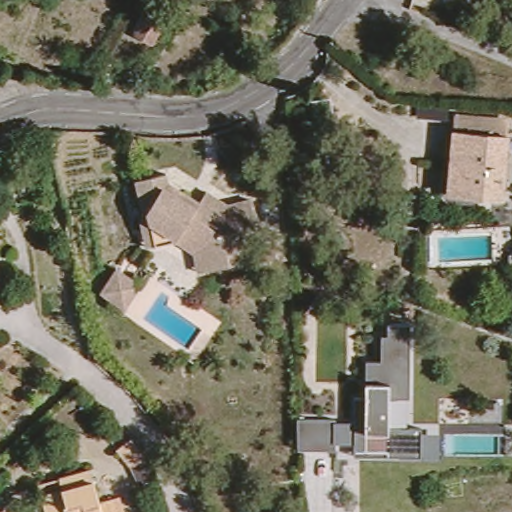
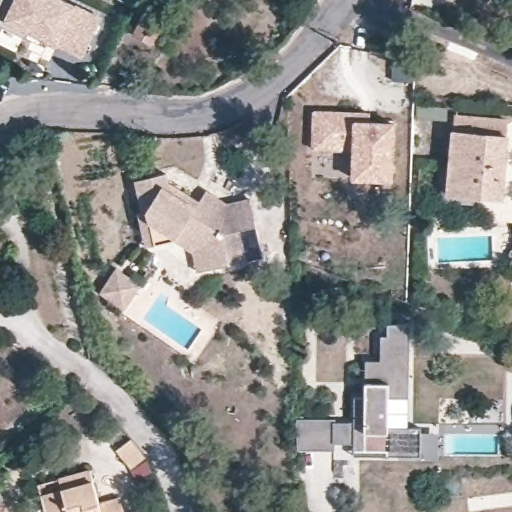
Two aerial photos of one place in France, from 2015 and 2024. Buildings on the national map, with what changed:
new [(80,58),(35,34),(25,37),(0,28),(0,0),(66,0),(101,18),(80,58)]
unchanged [(138,33),(148,14),(166,22),(156,41),(138,33)]
new [(313,109),(370,111),(370,120),(395,121),(394,179),(351,177),(353,150),(311,149),(313,109)]
unchanged [(455,139),(457,124),(512,130),(512,136),(511,145),(500,208),(445,202),(455,139)]
unchanged [(197,257),(178,244),(160,248),(148,249),(141,215),(146,215),(141,183),(172,177),(175,185),(207,205),(213,196),(233,208),(256,205),(260,232),(244,234),(250,266),(208,273),(201,274),(197,257)]
unchanged [(146,288),(129,312),(105,296),(122,272),(146,288)]
unchanged [(326,419),(326,423),(348,425),(346,396),(363,397),(363,359),(376,359),(376,337),(381,337),(383,323),(407,324),(407,399),(388,399),(389,428),(413,427),(413,433),(437,433),(437,458),(349,457),(348,444),(328,444),(328,451),(293,452),(295,418),(326,419)]
unchanged [(133,433),(146,451),(131,462),(118,445),(133,433)]
unchanged [(42,485),(65,481),(95,476),(102,508),(123,505),(125,512),(48,512),(45,497),(42,485)]

